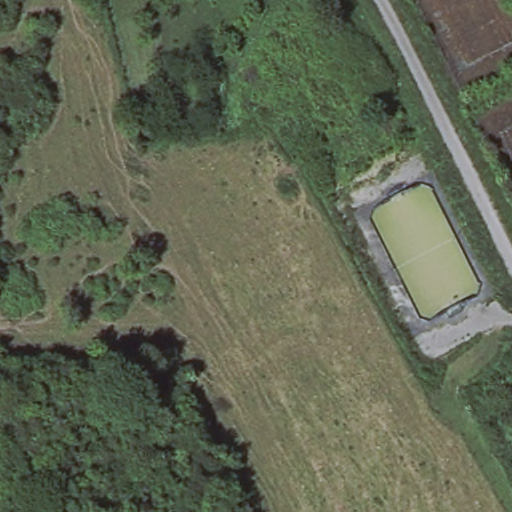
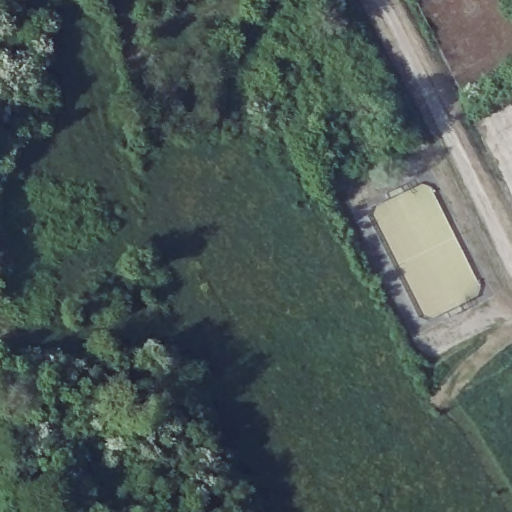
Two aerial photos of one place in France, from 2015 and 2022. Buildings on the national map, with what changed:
[]

